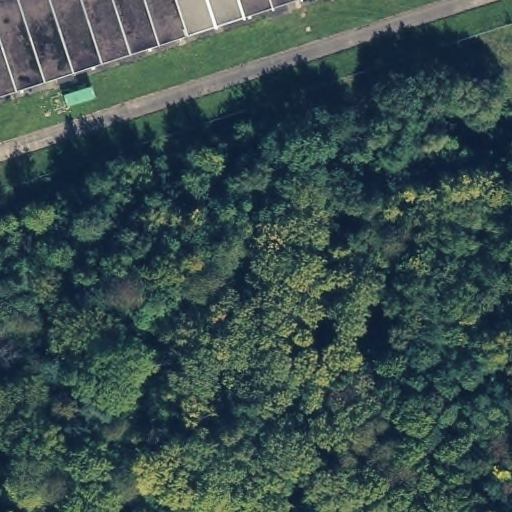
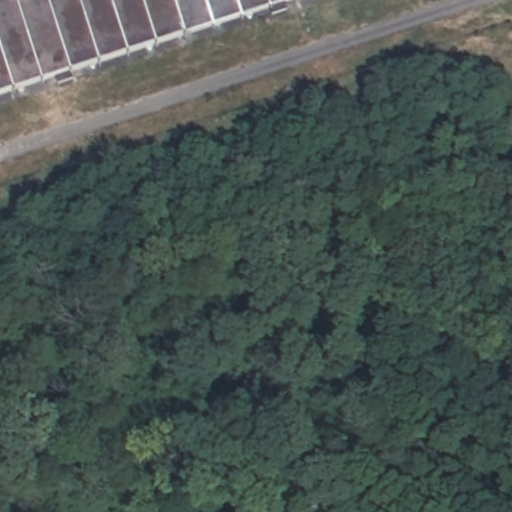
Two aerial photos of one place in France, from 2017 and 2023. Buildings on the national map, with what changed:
unchanged [(0,97),(0,0),(304,0),(0,97)]

